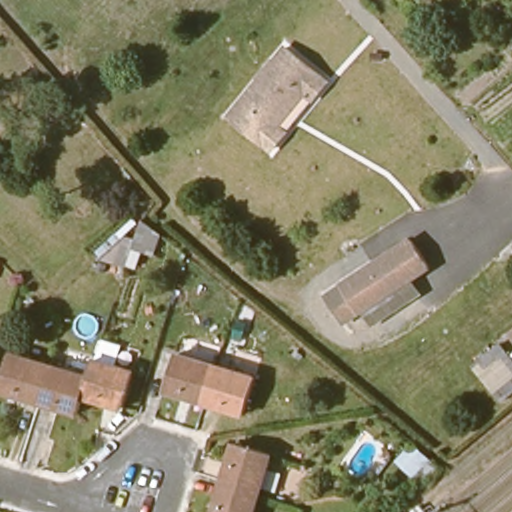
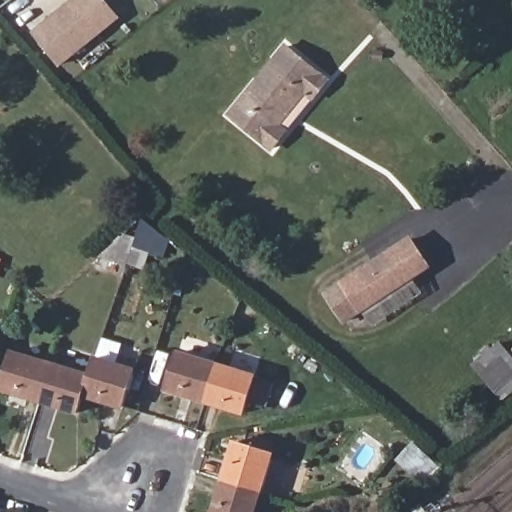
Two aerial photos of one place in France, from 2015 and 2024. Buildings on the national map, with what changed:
new [(61,67),(32,32),(72,0),(107,0),(121,18),(61,67)]
unchanged [(315,89),(307,83),(277,118),(286,124),(272,142),(230,108),(285,39),(325,73),(315,89)]
unchanged [(164,234),(154,259),(136,252),(128,270),(102,260),(96,253),(136,219),(144,220),(164,234)]
unchanged [(344,286),(408,239),(427,264),(410,278),(363,313),(344,286)]
unchanged [(410,278),(420,292),(373,326),(363,313),(410,278)]
unchanged [(512,406),(509,409),(472,364),(502,343),(512,355),(512,406)]
unchanged [(207,404),(170,393),(181,355),(219,366),(207,404)]
unchanged [(35,400),(0,390),(10,358),(46,368),(35,400)]
unchanged [(127,370),(116,406),(84,396),(87,381),(94,360),(127,370)]
unchanged [(255,377),(243,415),(207,404),(219,366),(255,377)]
unchanged [(80,413),(35,400),(46,368),(87,381),(84,396),(80,413)]
unchanged [(228,482),(240,442),(277,454),(266,493),(228,482)]
unchanged [(219,512),(228,482),(266,493),(261,512),(219,512)]

